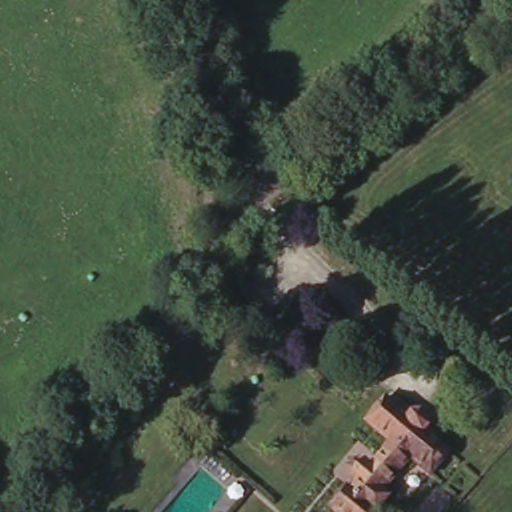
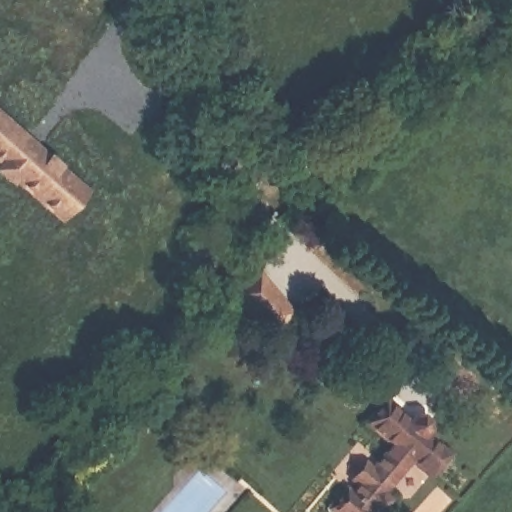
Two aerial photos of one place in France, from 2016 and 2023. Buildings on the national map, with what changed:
new [(96,190),(69,219),(0,161),(0,105),(96,190)]
unchanged [(416,421),(420,416),(428,416),(435,423),(435,431),(431,435),(454,458),(434,478),(415,460),(384,491),(391,498),(378,511),(379,512),(342,512),(331,502),(348,483),(354,489),(361,481),(355,476),(371,460),(376,465),(397,443),(372,419),(393,398),(416,421)]

